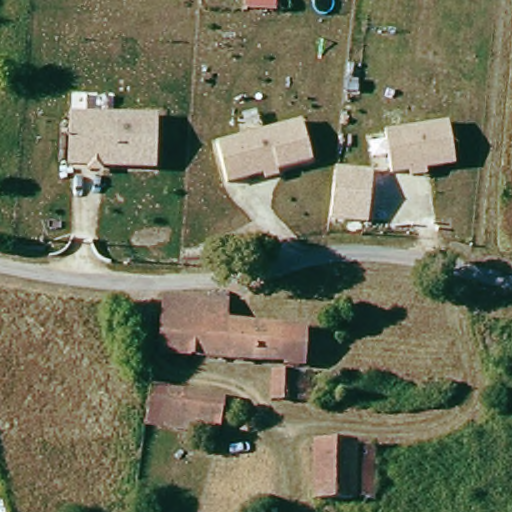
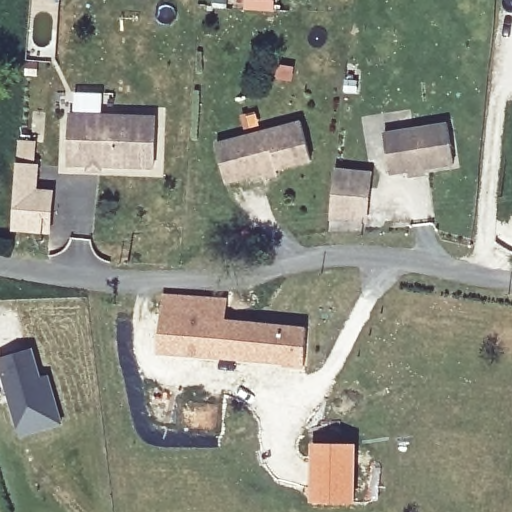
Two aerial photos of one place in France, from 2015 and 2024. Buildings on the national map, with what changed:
unchanged [(244,11),(244,0),(276,0),(275,13),(244,11)]
unchanged [(156,169),(101,168),(101,172),(85,172),(85,168),(67,168),(68,111),(157,114),(156,169)]
unchanged [(313,160),(277,171),(280,177),(265,181),(263,173),(228,182),(218,141),(302,120),(313,160)]
unchanged [(455,164),(426,170),(427,176),(412,179),(410,173),(391,177),(384,132),(448,121),(455,164)]
new [(17,166),(37,166),(35,192),(53,193),(51,233),(15,231),(17,191),(17,166)]
unchanged [(338,170),(372,175),(367,222),(332,218),(338,170)]
unchanged [(161,294),(227,297),(225,320),(310,327),(306,367),(159,354),(161,294)]
new [(59,425),(18,437),(17,429),(0,367),(0,358),(30,350),(39,381),(47,379),(59,425)]
unchanged [(267,402),(271,375),(315,381),(311,408),(267,402)]
unchanged [(142,421),(150,385),(222,400),(215,436),(142,421)]
unchanged [(352,450),(347,502),(310,498),(312,481),(317,446),(339,449),(352,450)]
unchanged [(377,453),(370,504),(347,502),(352,450),(377,453)]

